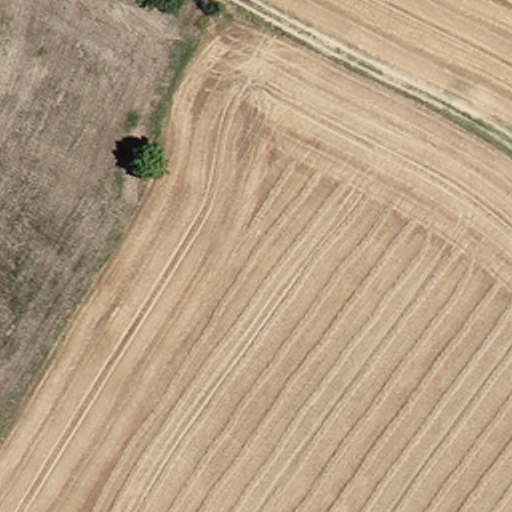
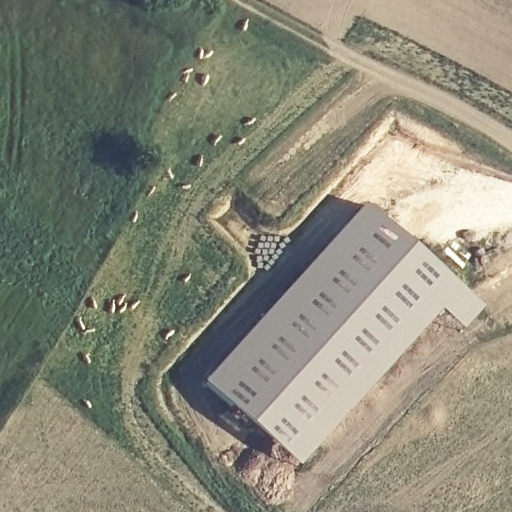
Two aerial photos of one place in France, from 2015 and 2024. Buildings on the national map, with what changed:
new [(441,312),(299,468),(204,383),(366,203),(483,309),(462,331),(441,312)]

